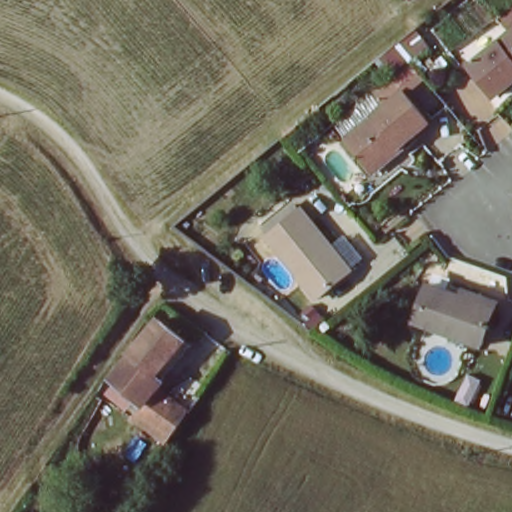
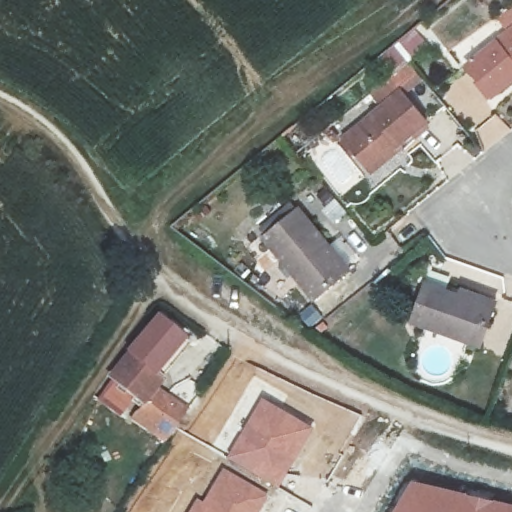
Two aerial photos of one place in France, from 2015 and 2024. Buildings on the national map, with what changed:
unchanged [(493,98),(469,67),(512,32),(512,82),(493,98)]
unchanged [(376,172),(371,165),(348,137),(404,91),(430,122),(402,144),(405,148),(376,172)]
unchanged [(345,281),(316,305),(264,242),(299,213),(330,251),(351,276),(345,281)]
unchanged [(444,290),(445,285),(493,300),(478,344),(412,321),(424,284),(444,290)]
unchanged [(163,316),(187,341),(150,378),(125,353),(163,316)]
unchanged [(111,385),(135,400),(125,418),(100,402),(111,385)]
new [(260,396),(315,427),(280,487),(225,455),(260,396)]
unchanged [(171,438),(153,426),(151,430),(133,418),(141,405),(155,412),(161,402),(168,406),(173,397),(191,409),(171,438)]
new [(195,498),(201,501),(221,468),(269,496),(260,512),(187,512),(195,498)]
new [(411,479),(512,504),(512,512),(393,512),(411,479)]

